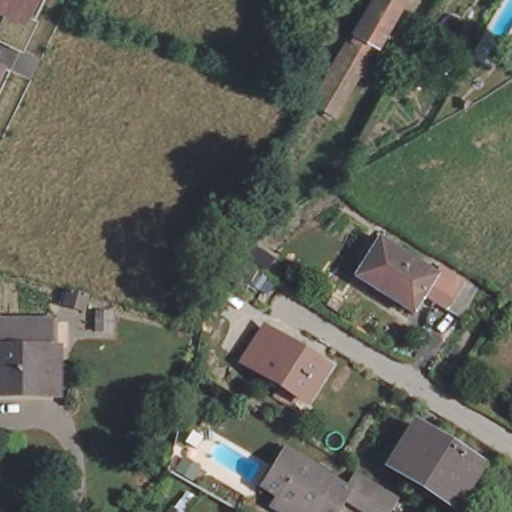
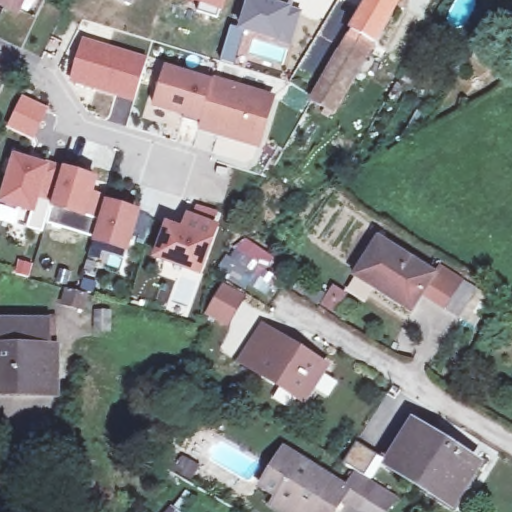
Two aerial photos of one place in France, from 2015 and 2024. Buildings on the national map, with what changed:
unchanged [(37,20),(22,51),(0,41),(0,21),(4,13),(0,11),(0,0),(31,0),(24,15),(37,20)]
new [(115,0),(134,0),(130,7),(115,0)]
new [(186,0),(225,0),(222,12),(186,0)]
new [(237,28),(245,0),(271,0),(290,6),(302,10),(289,49),(245,35),(235,64),(219,60),(229,25),(237,28)]
new [(271,0),(292,0),(290,6),(271,0)]
unchanged [(325,110),(320,118),(306,109),(313,96),(369,0),(398,0),(332,114),(325,110)]
new [(83,38),(147,57),(133,102),(69,82),(83,38)]
unchanged [(1,62),(0,64),(0,62),(1,62)]
new [(153,110),(165,66),(214,80),(202,120),(153,110)]
new [(214,80),(274,97),(260,144),(200,126),(214,80)]
unchanged [(405,87),(397,101),(388,96),(390,91),(392,89),(396,82),(405,87)]
new [(21,95),(48,107),(32,140),(5,127),(21,95)]
new [(137,230),(141,231),(142,230),(148,232),(145,241),(133,238),(127,254),(121,252),(120,256),(122,256),(117,268),(105,265),(112,250),(90,242),(90,238),(45,225),(42,233),(24,227),(27,215),(0,206),(0,197),(14,152),(61,165),(98,176),(93,191),(102,195),(102,197),(142,210),(137,230)]
new [(165,221),(181,227),(187,212),(220,224),(215,240),(200,277),(152,259),(165,221)]
new [(241,237),(274,258),(265,270),(277,277),(265,295),(249,285),(246,290),(224,277),(241,237)]
unchanged [(379,239),(434,276),(410,311),(355,275),(379,239)]
new [(224,282),(247,297),(227,328),(205,315),(224,282)]
unchanged [(90,292),(85,307),(65,301),(69,287),(90,292)]
demolished [(493,306),(485,320),(473,311),(481,299),(493,306)]
unchanged [(43,326),(43,347),(49,347),(48,390),(0,390),(0,325),(10,325),(43,326)]
unchanged [(267,330),(280,339),(282,337),(330,368),(308,402),(247,362),(267,330)]
unchanged [(449,500),(390,462),(414,425),(480,466),(467,487),(456,505),(449,500)]
unchanged [(277,510),(283,500),(267,489),(290,453),(352,493),(363,475),(380,485),(365,508),(349,498),(345,505),(339,512),(280,512),(277,510)]

